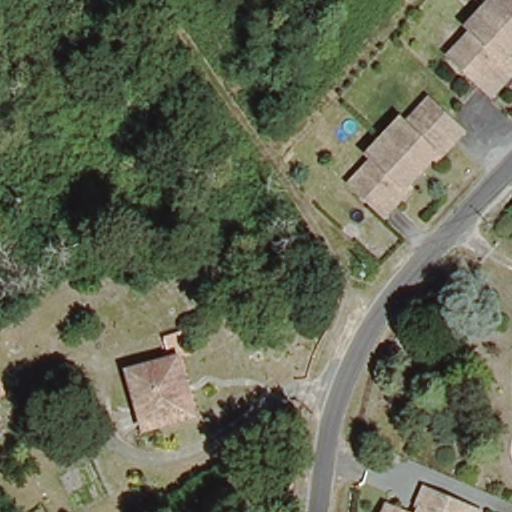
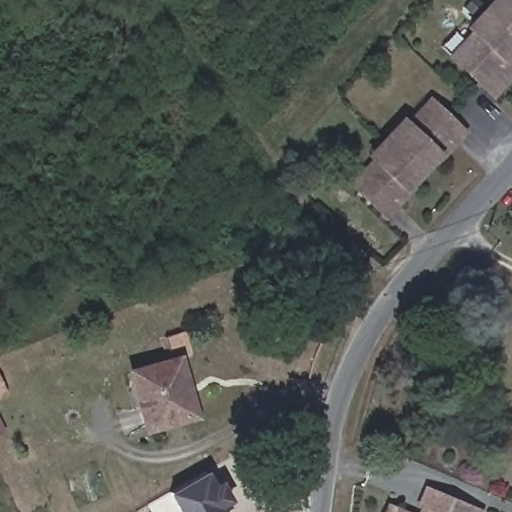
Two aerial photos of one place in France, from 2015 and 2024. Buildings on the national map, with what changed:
unchanged [(505,55),(512,61),(512,66),(480,96),(436,55),(484,0),(512,0),(512,49),(505,55)]
unchanged [(456,129),(373,213),(337,180),(416,91),(456,129)]
unchanged [(140,423),(135,366),(173,363),(181,362),(184,398),(186,420),(140,423)]
unchanged [(21,388),(8,395),(0,398),(0,372),(10,366),(21,388)]
new [(168,492),(206,471),(214,485),(222,480),(232,499),(220,506),(223,512),(180,512),(168,492)]
unchanged [(481,510),(480,512),(418,512),(421,506),(417,505),(425,486),(481,510)]
unchanged [(388,504),(405,512),(385,512),(388,504)]

